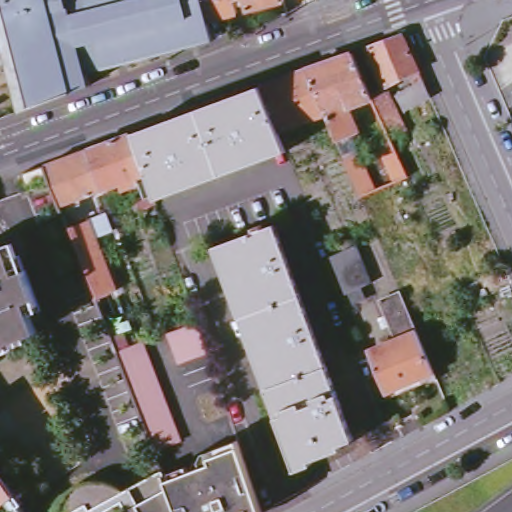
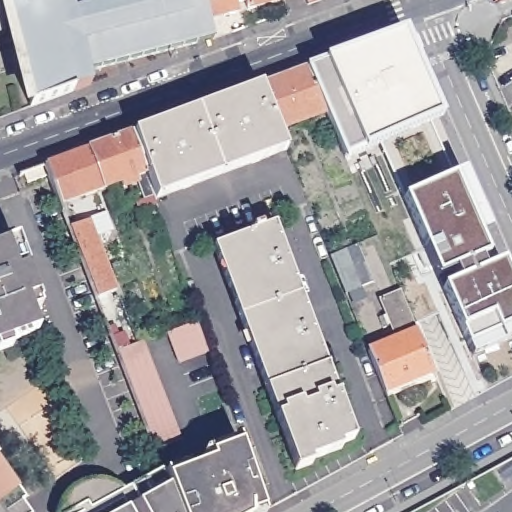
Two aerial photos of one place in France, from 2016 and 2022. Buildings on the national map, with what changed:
unchanged [(5,24),(0,26),(0,0),(199,0),(206,23),(210,40),(172,54),(84,73),(87,86),(26,108),(5,24)]
unchanged [(230,1),(233,16),(206,23),(199,0),(235,0),(230,1)]
unchanged [(239,0),(282,0),(283,3),(243,14),(239,0)]
new [(432,123),(454,176),(464,172),(490,232),(480,236),(489,257),(482,260),(486,269),(504,262),(512,282),(512,340),(503,344),(472,356),(462,331),(443,288),(459,281),(455,271),(438,279),(404,199),(382,146),(364,152),(347,160),(329,117),(307,65),(325,61),(405,30),(443,118),(432,123)]
demolished [(399,87),(389,92),(367,43),(404,30),(431,92),(406,103),(399,87)]
unchanged [(1,37),(0,37),(0,35),(1,37)]
demolished [(367,43),(389,92),(399,87),(406,103),(400,106),(410,130),(392,138),(375,98),(353,49),(367,43)]
demolished [(361,136),(342,146),(329,117),(307,65),(353,49),(375,98),(349,108),(361,136)]
unchanged [(262,82),(307,65),(329,117),(283,135),(262,82)]
unchanged [(133,129),(262,82),(283,135),(288,147),(156,195),(133,129)]
unchanged [(141,205),(131,180),(104,190),(102,184),(87,145),(133,129),(156,195),(158,199),(141,205)]
unchanged [(45,160),(87,145),(102,184),(61,200),(45,160)]
unchanged [(43,160),(47,171),(29,177),(26,167),(43,160)]
demolished [(377,182),(358,190),(349,168),(367,160),(377,182)]
unchanged [(114,289),(98,295),(70,224),(86,218),(114,289)]
unchanged [(277,227),(358,441),(344,446),(345,449),(314,460),(315,464),(298,470),(216,249),(277,227)]
unchanged [(25,261),(16,265),(11,251),(0,255),(0,245),(21,237),(31,262),(26,264),(25,261)]
unchanged [(366,290),(370,301),(359,306),(354,295),(352,296),(336,256),(360,247),(375,286),(366,290)]
unchanged [(2,361),(0,358),(0,255),(11,251),(16,265),(25,261),(26,264),(46,317),(36,321),(43,339),(14,349),(16,356),(2,361)]
unchanged [(370,348),(398,337),(395,328),(384,332),(379,322),(391,318),(382,298),(403,290),(441,379),(391,399),(370,348)]
unchanged [(180,362),(169,331),(198,320),(209,353),(180,362)]
unchanged [(183,436),(156,446),(118,347),(144,336),(183,436)]
unchanged [(258,512),(181,512),(167,475),(191,466),(195,458),(241,440),(262,500),(264,505),(265,508),(258,512)]
unchanged [(63,494),(70,486),(77,481),(88,477),(97,476),(107,478),(115,481),(124,487),(163,465),(167,475),(181,512),(56,512),(58,503),(63,494)]
unchanged [(24,499),(20,501),(27,512),(0,512),(0,466),(24,499)]

